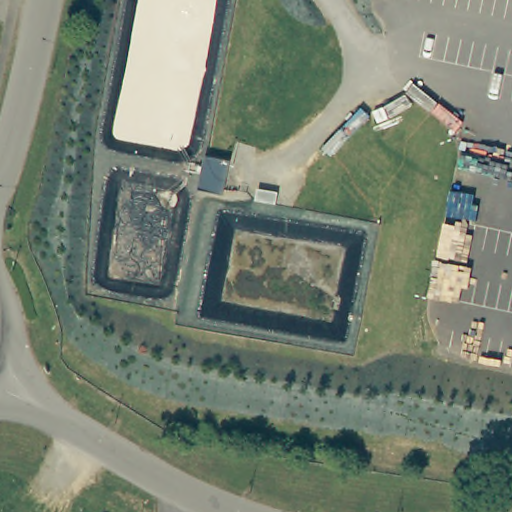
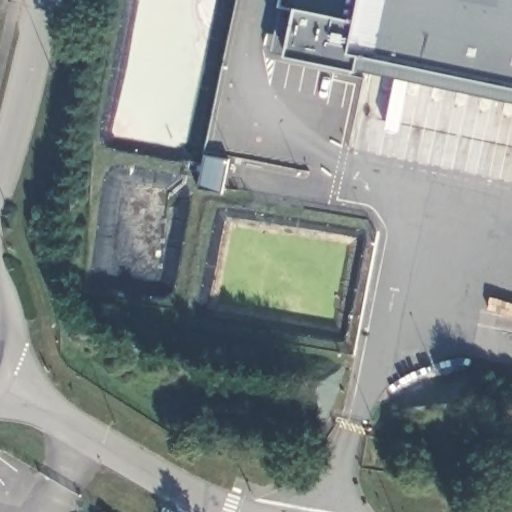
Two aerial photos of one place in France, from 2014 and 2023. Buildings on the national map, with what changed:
new [(351,51),(340,49),(338,64),(288,53),(298,8),(282,4),(283,0),(512,0),(512,85),(351,51)]
unchanged [(223,192),(199,188),(205,156),(229,162),(223,192)]

